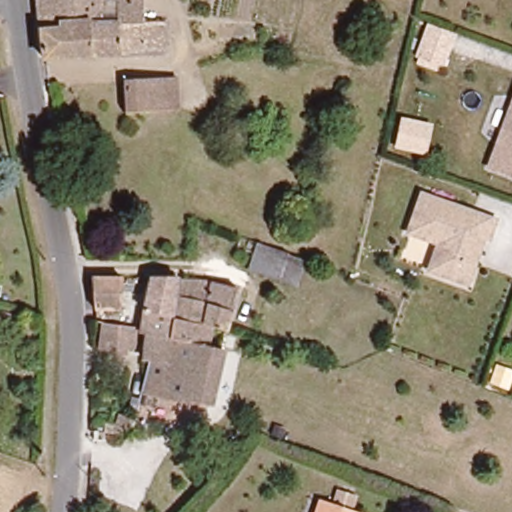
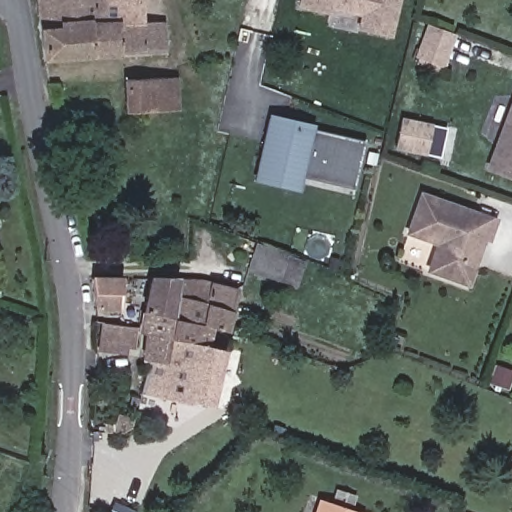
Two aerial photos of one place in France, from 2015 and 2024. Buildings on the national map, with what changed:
unchanged [(105,4),(142,3),(142,25),(161,26),(162,58),(42,62),(34,0),(105,0),(105,4)]
new [(332,11),(331,15),(297,7),(299,0),(401,0),(392,39),(357,31),(359,16),(332,11)]
unchanged [(457,33),(444,65),(418,53),(432,23),(457,33)]
unchanged [(122,110),(122,80),(174,79),(174,110),(160,110),(122,110)]
unchanged [(512,99),(512,179),(488,171),(512,99)]
new [(365,141),(353,189),(303,177),(300,192),(254,181),(269,115),(316,125),(314,131),(365,141)]
new [(446,128),(440,157),(425,155),(394,149),(401,118),(431,125),(446,128)]
unchanged [(487,239),(480,236),(461,282),(422,267),(432,242),(403,231),(418,191),(494,219),(487,239)]
unchanged [(295,287),(237,263),(246,240),(305,258),(295,287)]
unchanged [(149,274),(179,275),(171,316),(143,307),(149,274)]
unchanged [(82,275),(119,276),(116,319),(88,315),(82,275)]
unchanged [(179,275),(232,290),(223,332),(201,324),(171,316),(179,275)]
unchanged [(171,316),(201,324),(197,345),(149,332),(139,328),(143,307),(171,316)]
unchanged [(97,356),(99,326),(127,328),(125,358),(97,356)]
unchanged [(145,387),(136,386),(148,335),(149,332),(197,345),(205,346),(218,349),(206,402),(145,387)]
unchanged [(317,512),(322,497),(363,510),(362,512),(317,512)]

